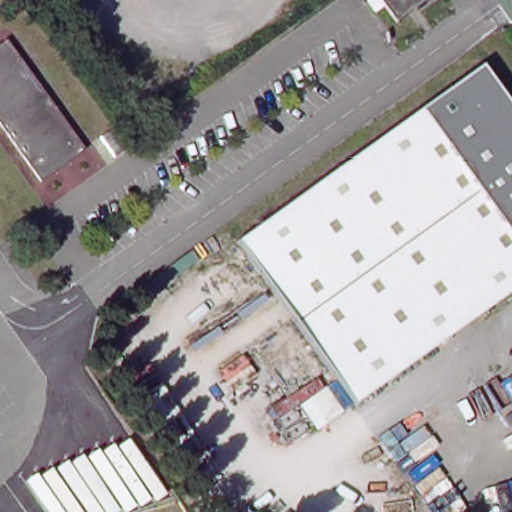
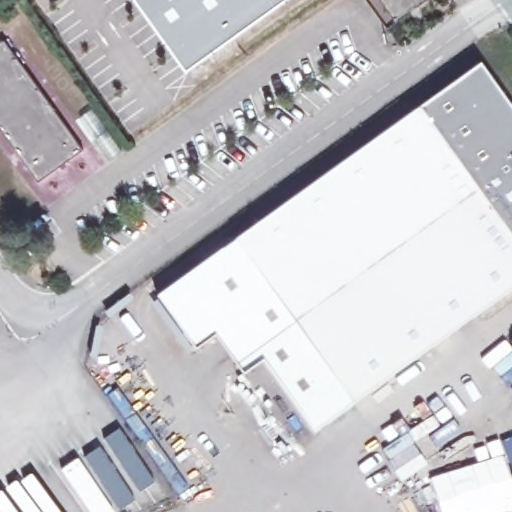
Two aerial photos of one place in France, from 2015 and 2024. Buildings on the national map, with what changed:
new [(134,0),(290,0),(187,74),(134,0)]
unchanged [(425,0),(401,17),(388,0),(425,0)]
unchanged [(5,39),(84,149),(40,180),(0,125),(0,43),(5,39)]
unchanged [(232,242),(477,67),(512,115),(512,289),(349,406),(232,242)]
new [(349,406),(314,432),(263,361),(242,376),(215,335),(195,350),(158,298),(232,242),(349,406)]
new [(492,368),(512,352),(512,392),(509,387),(492,368)]
new [(512,436),(512,469),(510,469),(512,477),(512,508),(498,512),(477,512),(475,509),(466,512),(442,512),(429,478),(477,462),(472,448),(500,440),(512,436)]

